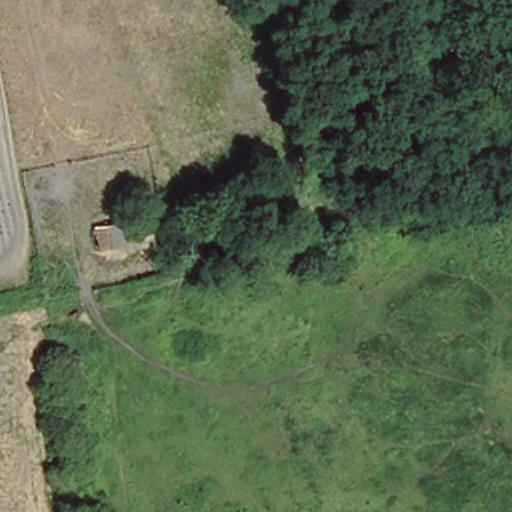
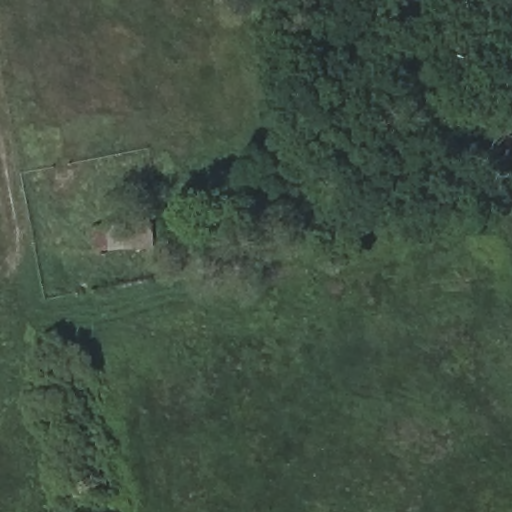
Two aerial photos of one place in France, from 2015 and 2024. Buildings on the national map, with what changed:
unchanged [(512,118),(511,118),(512,120),(512,137),(503,142),(485,115),(505,103),(512,113),(512,118)]
unchanged [(144,255),(98,258),(97,237),(143,234),(144,255)]

